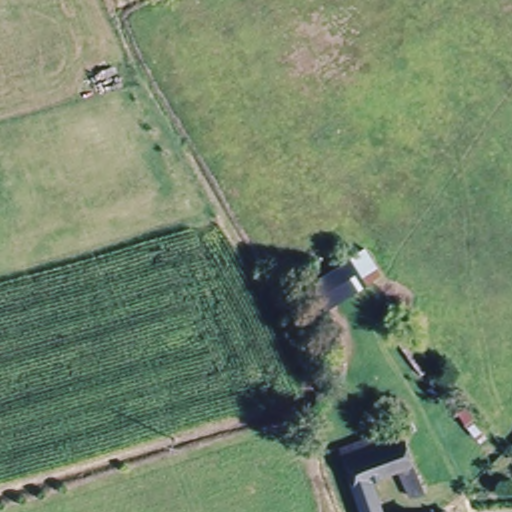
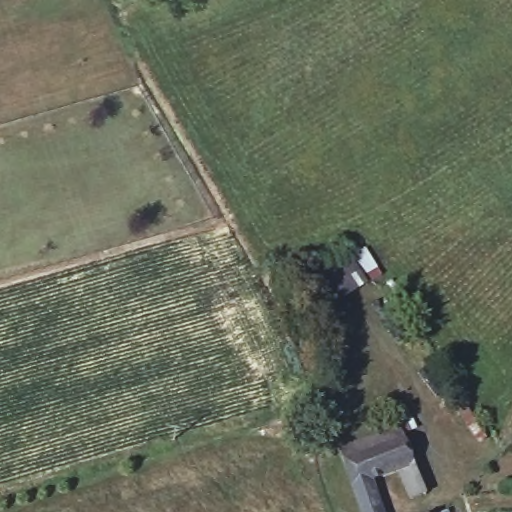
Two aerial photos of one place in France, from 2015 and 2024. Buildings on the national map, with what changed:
unchanged [(412,464),(370,480),(383,512),(360,512),(337,449),(401,427),(412,464)]

